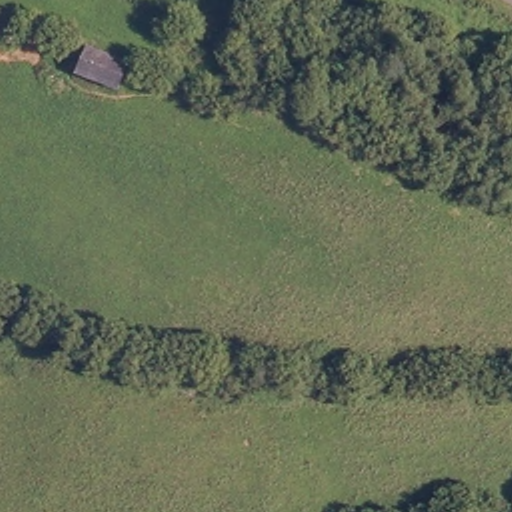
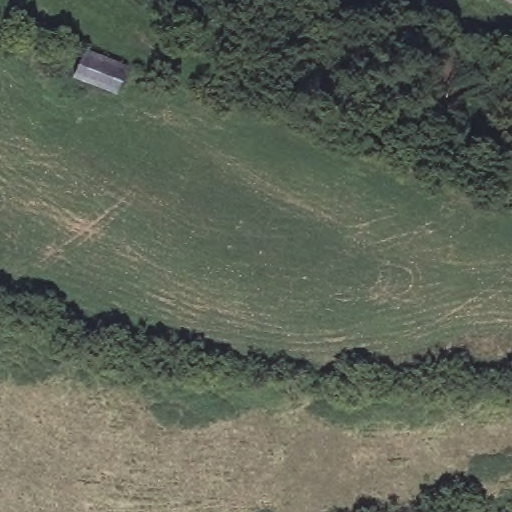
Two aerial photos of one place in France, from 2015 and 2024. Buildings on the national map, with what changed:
unchanged [(91,43),(134,59),(125,89),(80,73),(91,43)]

